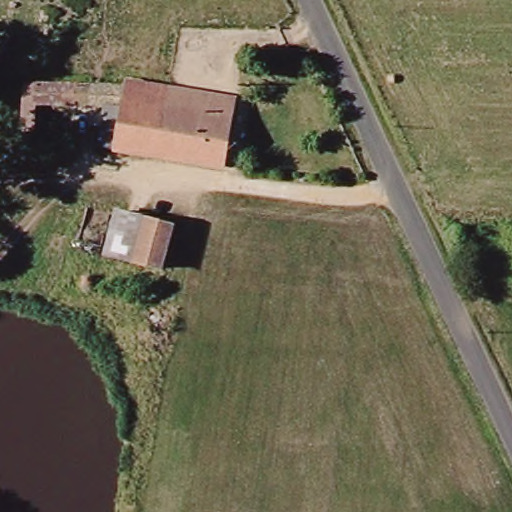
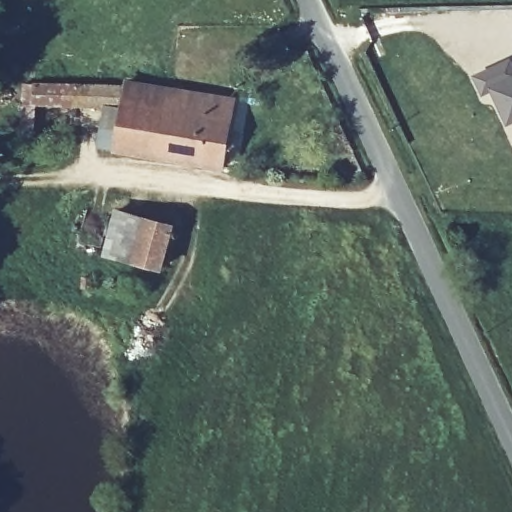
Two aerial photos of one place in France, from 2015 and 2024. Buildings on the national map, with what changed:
new [(512,76),(512,122),(504,125),(488,91),(479,95),(471,78),(506,62),(512,76)]
unchanged [(133,80),(239,96),(226,164),(122,148),(133,80)]
unchanged [(125,86),(124,105),(108,105),(41,105),(40,134),(26,134),(27,85),(111,85),(125,86)]
unchanged [(174,220),(165,263),(108,251),(118,208),(174,220)]

